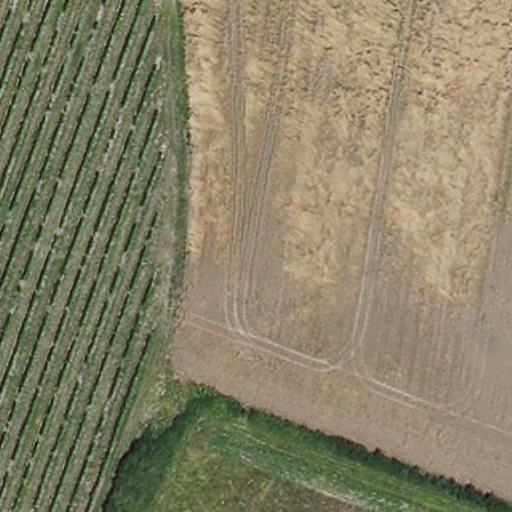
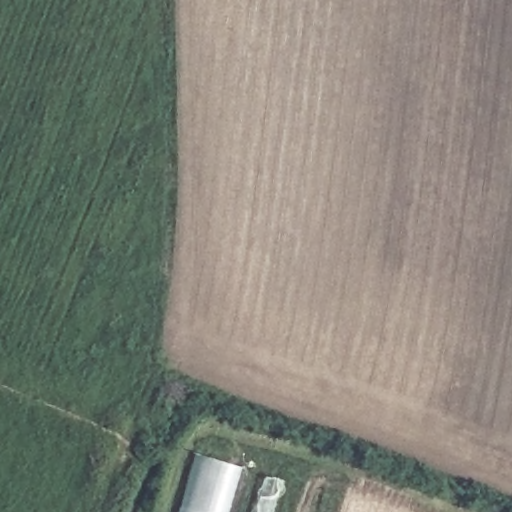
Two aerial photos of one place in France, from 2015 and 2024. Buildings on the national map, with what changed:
new [(243,466),(229,512),(178,512),(196,453),(243,466)]

